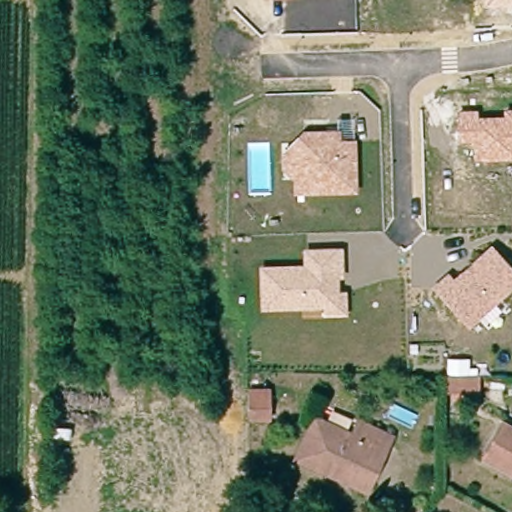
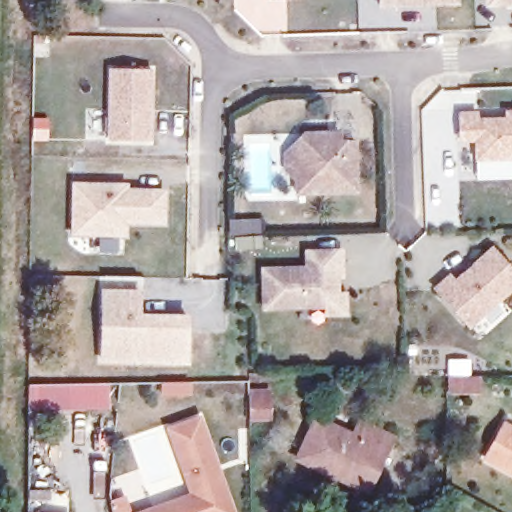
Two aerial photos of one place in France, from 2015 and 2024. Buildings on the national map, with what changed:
new [(377,5),(377,0),(458,0),(458,4),(377,5)]
unchanged [(484,7),(484,0),(512,0),(512,7),(484,7)]
new [(107,139),(107,66),(153,66),(152,139),(107,139)]
unchanged [(474,161),(473,142),(456,142),(455,110),(477,110),(479,117),(504,118),(503,110),(512,109),(512,161),(474,161)]
unchanged [(293,195),(292,179),(281,170),(281,154),(302,130),(341,129),(341,140),(356,140),(357,194),(293,195)]
new [(126,224),(126,235),(70,234),(71,182),(127,182),(126,188),(166,188),(165,223),(126,224)]
unchanged [(431,287),(447,272),(452,277),(489,245),(512,270),(512,291),(470,330),(431,287)]
unchanged [(322,317),(322,310),(260,310),(258,267),(303,265),(302,249),(343,249),(345,279),(339,280),(340,292),(347,292),(347,316),(322,317)]
new [(100,361),(100,287),(140,288),(140,315),(188,316),(188,364),(100,361)]
new [(449,381),(448,360),(484,360),(484,381),(449,381)]
demolished [(446,398),(445,377),(480,376),(481,398),(446,398)]
new [(109,410),(28,410),(28,385),(108,383),(109,410)]
unchanged [(253,424),(253,415),(252,394),(272,393),(272,415),(272,423),(253,424)]
unchanged [(338,476),(301,460),(322,416),(354,431),(361,416),(398,433),(389,452),(370,490),(338,476)]
new [(169,434),(199,425),(227,512),(160,512),(191,502),(169,434)]
unchanged [(512,435),(512,478),(487,465),(505,431),(512,435)]

